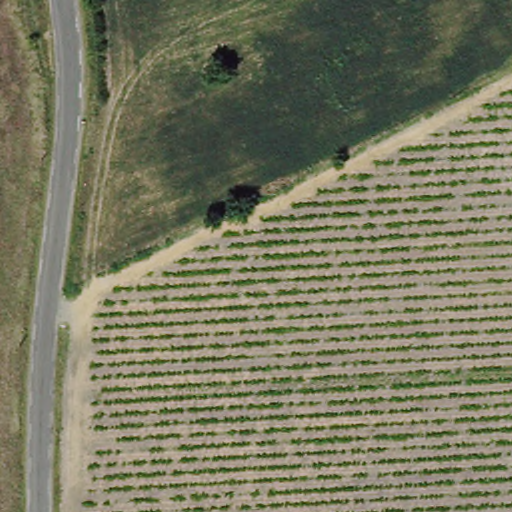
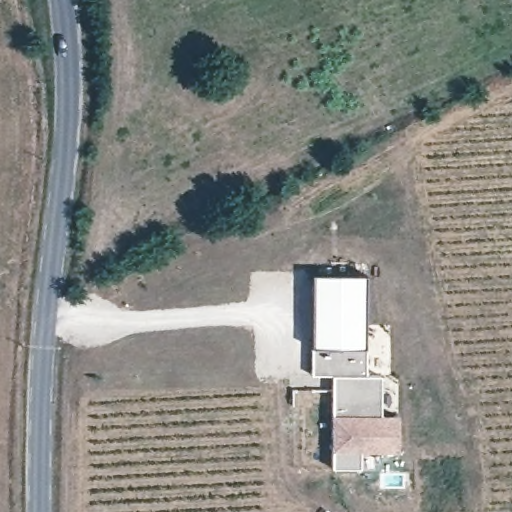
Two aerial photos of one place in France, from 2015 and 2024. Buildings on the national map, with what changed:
new [(361,273),(363,373),(377,373),(378,413),(394,413),(395,448),(358,448),(358,465),(329,466),(329,375),(308,375),(307,274),(361,273)]

